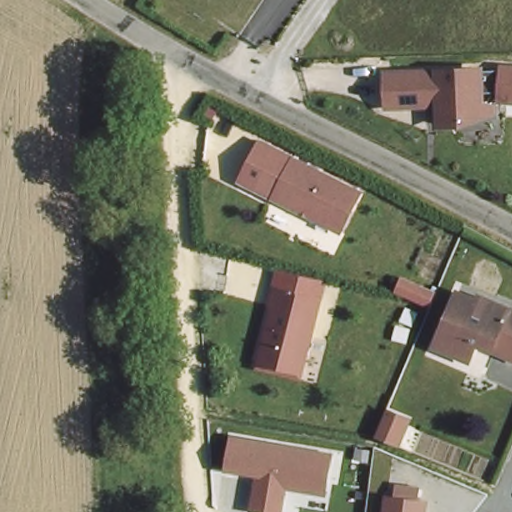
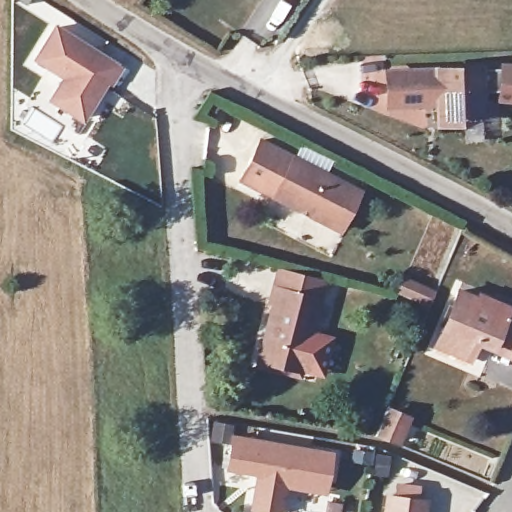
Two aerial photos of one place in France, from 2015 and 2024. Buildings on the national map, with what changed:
new [(52,21),(124,66),(113,86),(107,83),(85,124),(45,99),(60,77),(30,60),(52,21)]
unchanged [(487,64),(490,125),(433,125),(432,104),(383,104),(382,71),(487,64)]
unchanged [(500,69),(501,64),(512,65),(512,103),(500,102),(501,123),(490,125),(487,78),(487,69),(500,69)]
unchanged [(346,228),(240,180),(262,137),(367,189),(346,228)]
unchanged [(278,284),(325,297),(305,369),(262,359),(278,301),(273,300),(278,284)]
unchanged [(441,337),(459,296),(487,307),(490,302),(512,311),(512,361),(475,347),(470,358),(449,350),(437,345),(441,337)]
unchanged [(411,420),(400,443),(397,442),(381,435),(392,411),(411,420)]
unchanged [(328,496),(288,488),(285,512),(257,512),(248,511),(255,477),(225,471),(232,433),(337,451),(328,496)]
unchanged [(429,498),(427,512),(384,512),(387,491),(429,498)]

